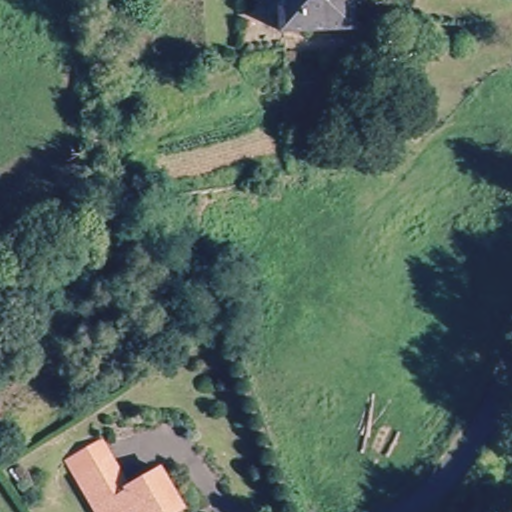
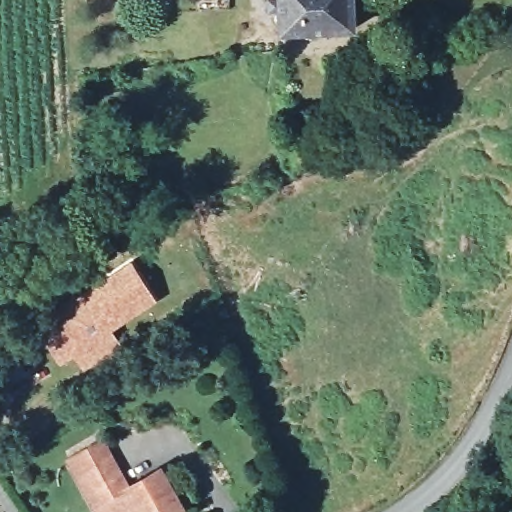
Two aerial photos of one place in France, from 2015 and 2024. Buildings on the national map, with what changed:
unchanged [(350,0),(352,31),(281,36),(279,0),(350,0)]
new [(70,293),(110,273),(131,259),(159,300),(115,330),(125,347),(84,372),(72,356),(60,365),(33,321),(70,293)]
unchanged [(65,462),(96,444),(111,469),(81,487),(65,462)]
unchanged [(81,487),(111,469),(131,501),(161,484),(179,512),(96,512),(81,487)]

